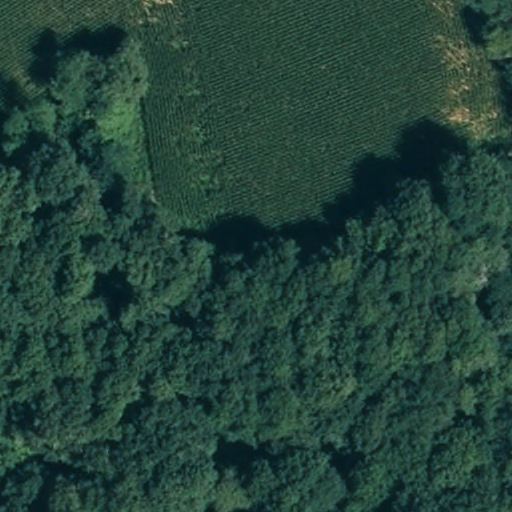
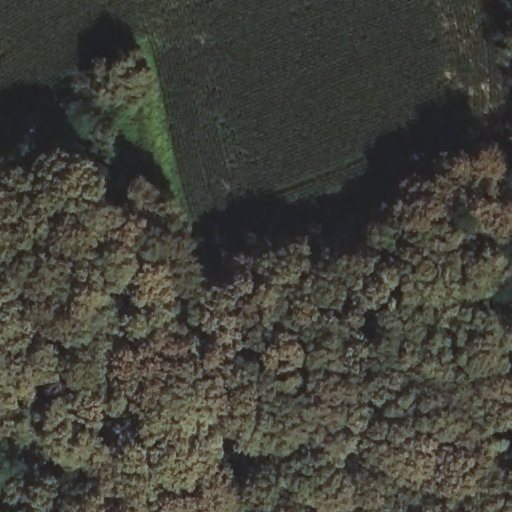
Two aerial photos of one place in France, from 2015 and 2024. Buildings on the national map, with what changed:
[]

